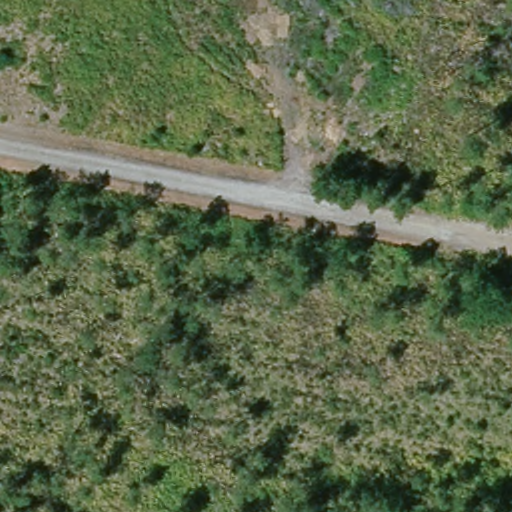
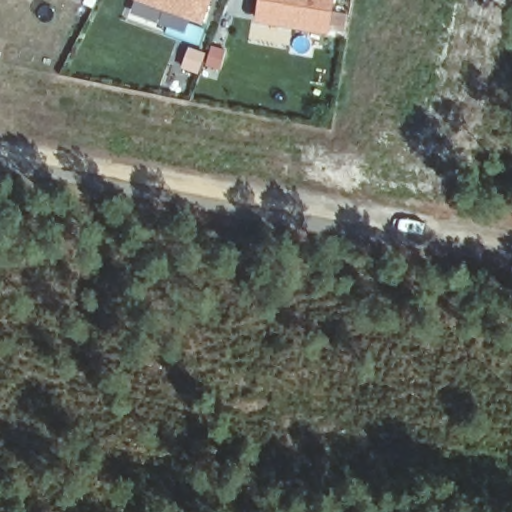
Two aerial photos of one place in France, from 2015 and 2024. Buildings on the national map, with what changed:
new [(142,0),(212,0),(204,24),(142,0)]
new [(259,0),(334,0),(330,34),(256,21),(259,0)]

